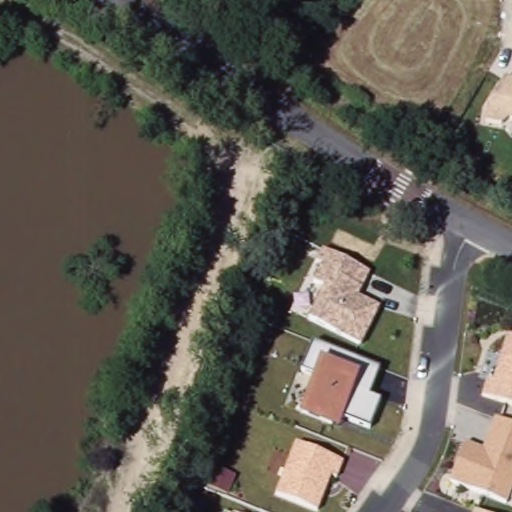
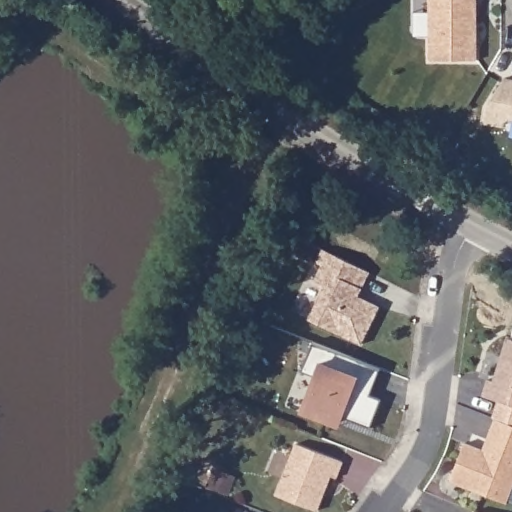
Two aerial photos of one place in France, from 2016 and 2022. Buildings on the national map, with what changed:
new [(471,57),(424,58),(423,0),(470,0),(471,57)]
unchanged [(512,78),(512,122),(483,119),(482,106),(501,77),(512,78)]
unchanged [(357,297),(377,306),(361,343),(308,321),(321,288),(312,284),(320,265),(316,263),(323,249),(369,270),(357,297)]
unchanged [(481,396),(487,380),(492,383),(508,337),(512,338),(512,406),(481,396)]
unchanged [(368,396),(379,402),(370,425),(343,414),(339,426),(301,412),(314,375),(301,370),(312,342),(379,369),(368,396)]
unchanged [(508,503),(451,482),(466,445),(483,451),(495,418),(512,425),(512,492),(508,503)]
unchanged [(336,478),(329,475),(315,510),(274,495),(294,444),(343,462),(336,478)]
unchanged [(480,512),(474,512),(475,510),(480,512)]

